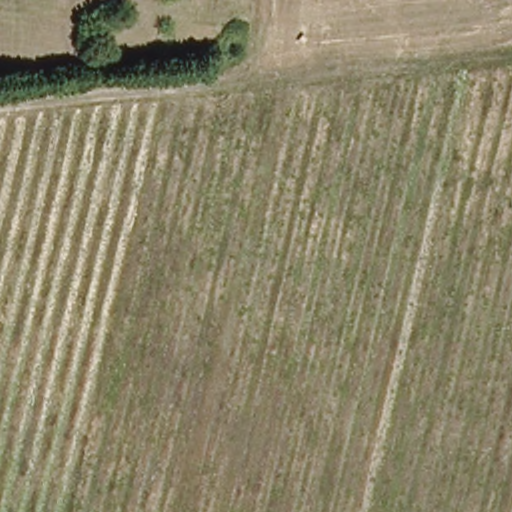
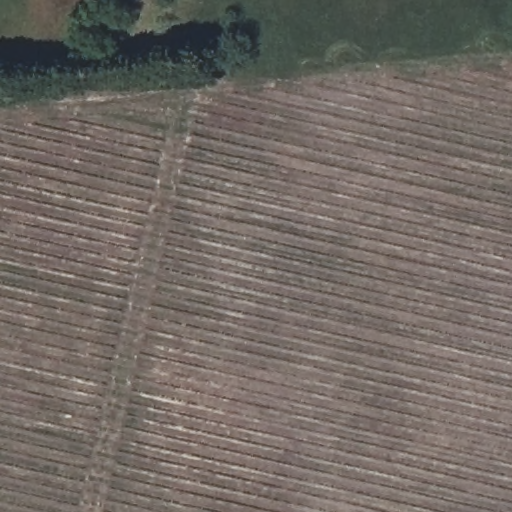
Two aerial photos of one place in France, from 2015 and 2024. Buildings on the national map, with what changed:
[]

